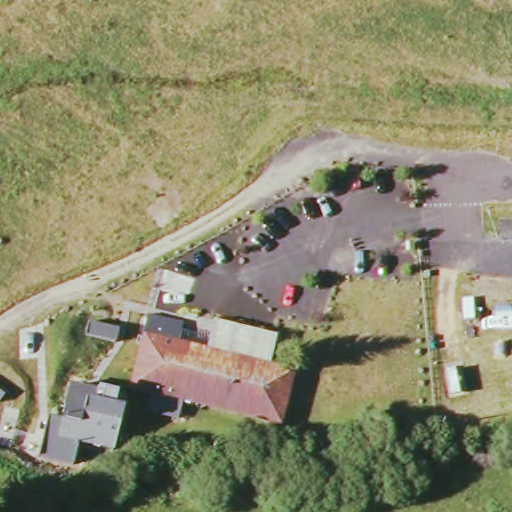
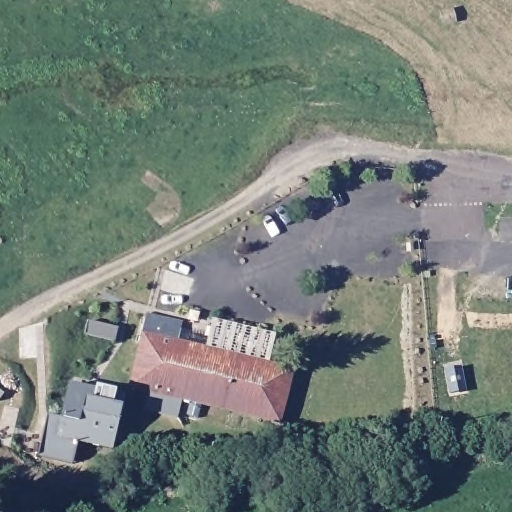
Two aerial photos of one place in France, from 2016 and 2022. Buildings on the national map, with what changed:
unchanged [(179,334),(178,352),(293,376),(283,429),(134,399),(146,329),(179,334)]
unchanged [(127,407),(105,461),(54,440),(77,388),(127,407)]

